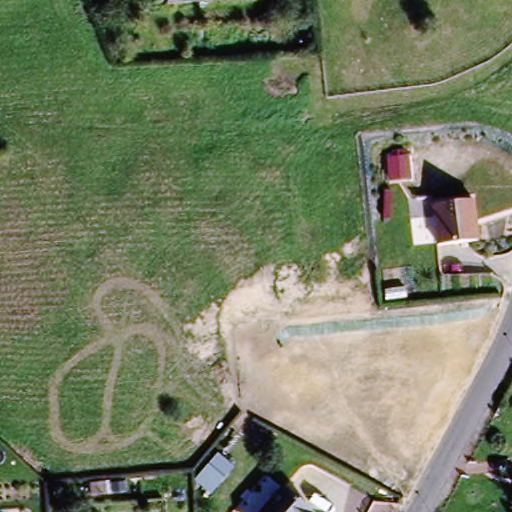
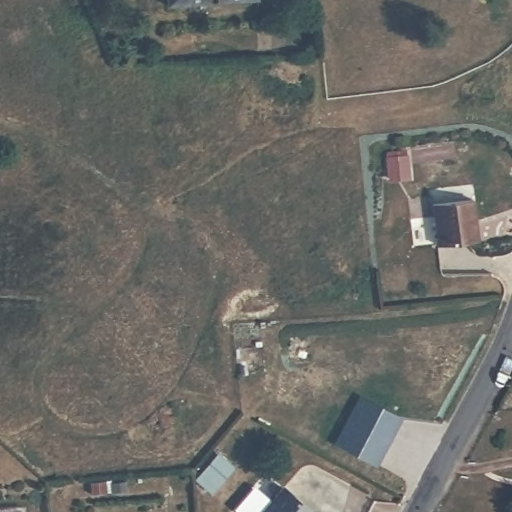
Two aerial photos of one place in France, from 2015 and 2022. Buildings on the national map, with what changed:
unchanged [(238,0),(167,6),(166,0),(238,0)]
unchanged [(477,244),(437,248),(433,207),(472,203),(477,244)]
new [(400,417),(375,465),(332,444),(357,396),(400,417)]
unchanged [(277,488),(305,512),(256,512),(277,488)]

